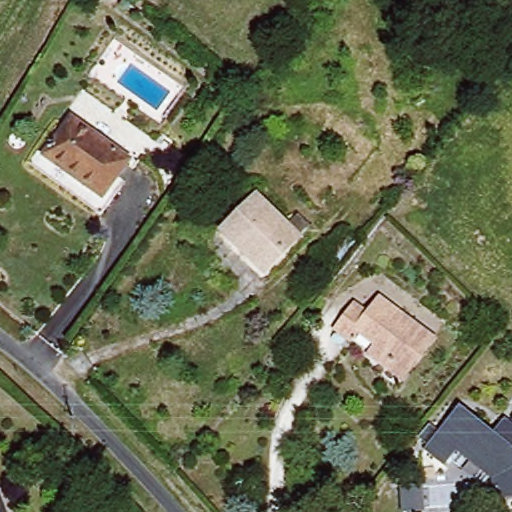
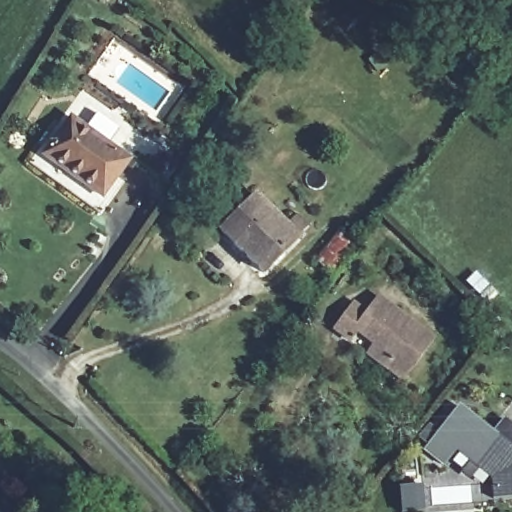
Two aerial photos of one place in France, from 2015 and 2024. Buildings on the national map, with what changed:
unchanged [(102,210),(33,157),(62,116),(69,121),(74,114),(131,156),(120,171),(128,177),(102,210)]
unchanged [(254,196),(297,234),(263,271),(221,232),(254,196)]
unchanged [(371,347),(351,333),(346,341),(332,332),(351,305),(367,316),(377,300),(427,334),(404,368),(398,378),(365,356),(371,347)]
unchanged [(495,492),(445,460),(436,474),(416,460),(451,410),(486,435),(496,421),(512,432),(512,451),(511,452),(512,453),(512,502),(497,505),(495,492)]
unchanged [(432,512),(410,512),(409,511),(430,507),(432,512)]

